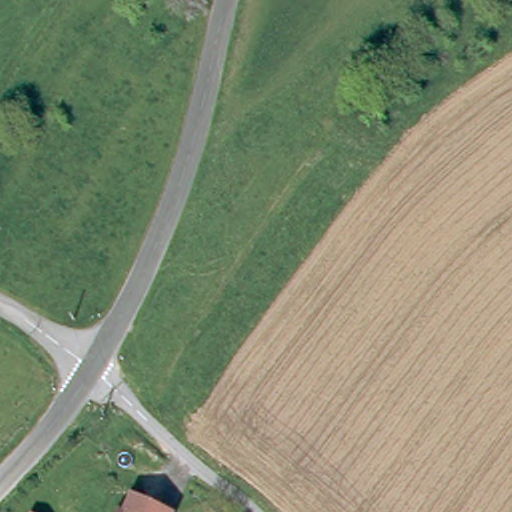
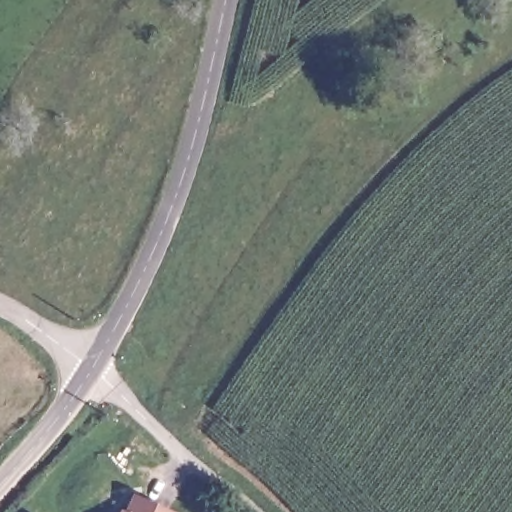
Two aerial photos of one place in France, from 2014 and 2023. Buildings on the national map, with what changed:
unchanged [(162,512),(125,512),(132,498),(162,512)]

